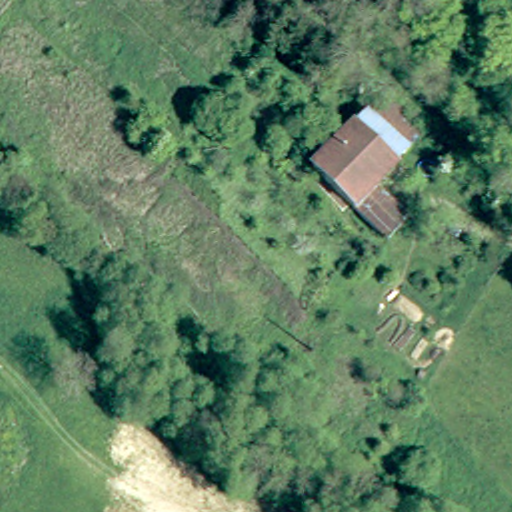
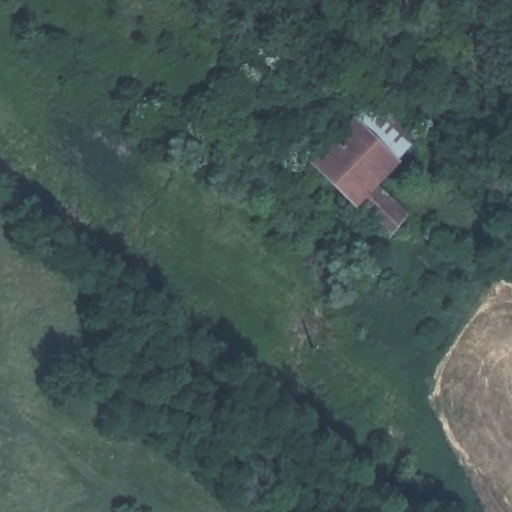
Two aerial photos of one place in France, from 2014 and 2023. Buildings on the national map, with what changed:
unchanged [(341,124),(368,96),(381,111),(410,141),(381,167),(341,124)]
unchanged [(367,235),(351,218),(301,164),(341,124),(381,167),(392,180),(375,196),(390,213),(367,235)]

